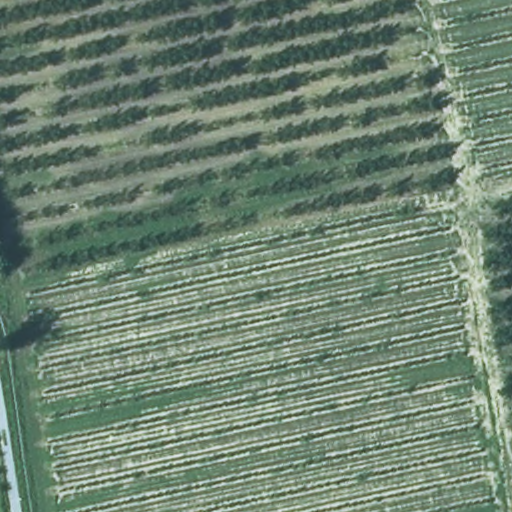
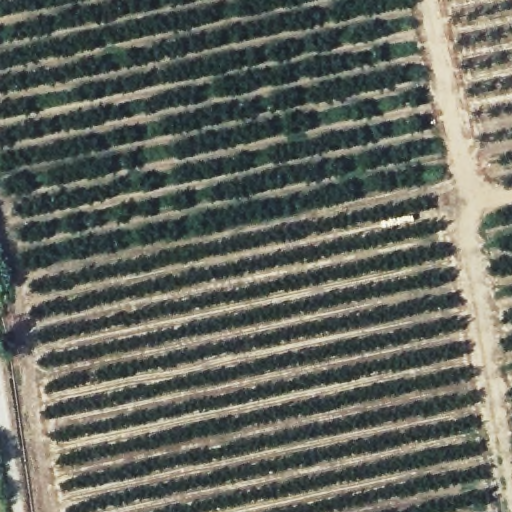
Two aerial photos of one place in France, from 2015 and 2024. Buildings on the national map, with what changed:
[]

